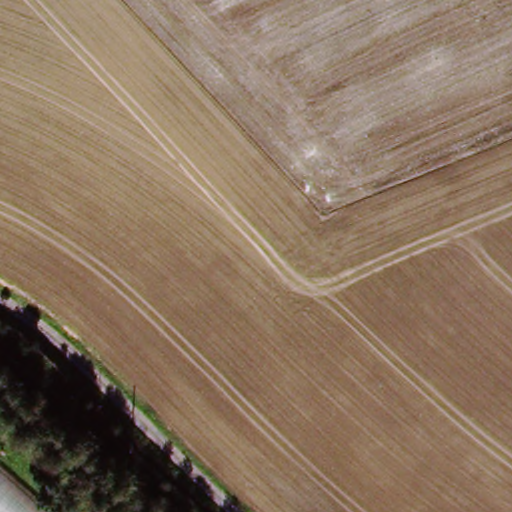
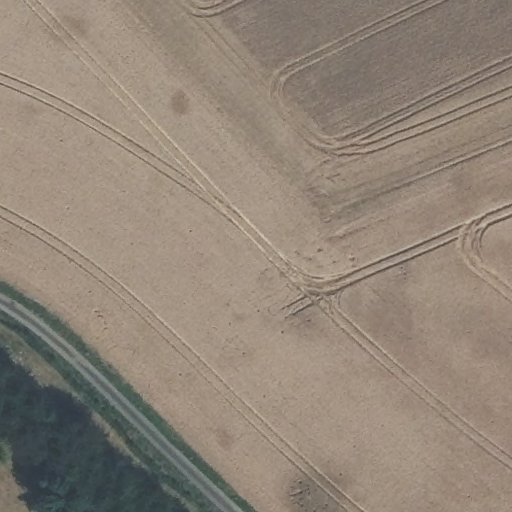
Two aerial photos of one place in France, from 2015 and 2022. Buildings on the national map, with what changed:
demolished [(0,512),(0,469),(48,512),(0,512)]

